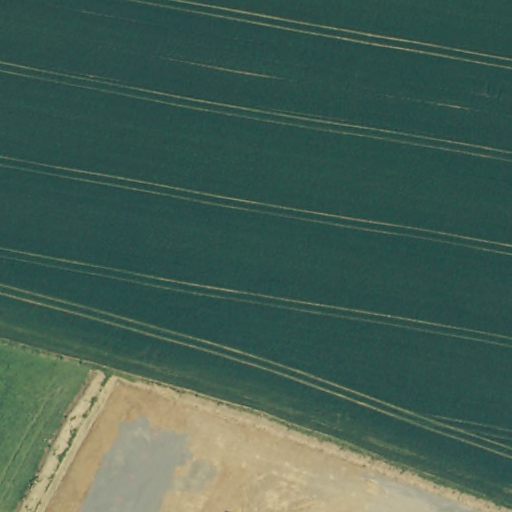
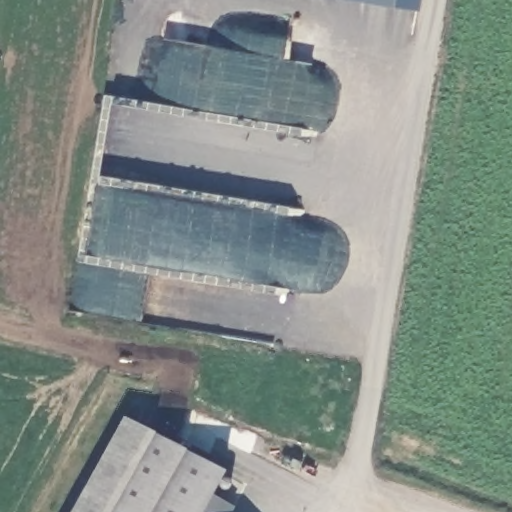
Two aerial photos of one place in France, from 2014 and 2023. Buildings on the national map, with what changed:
new [(214,493),(235,507),(233,512),(71,512),(124,416),(225,472),(214,493)]

